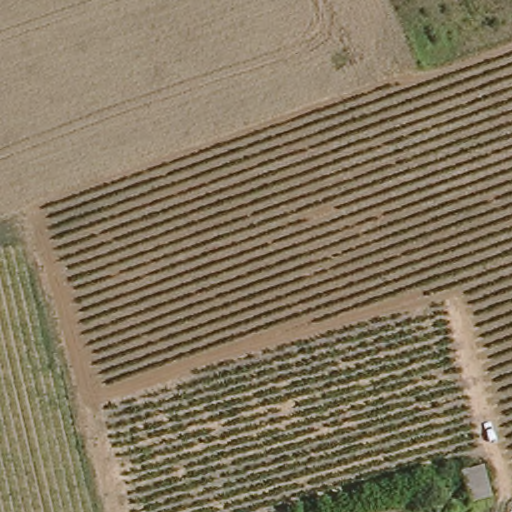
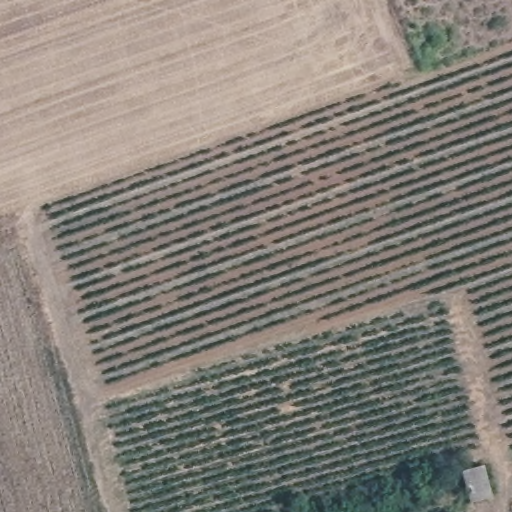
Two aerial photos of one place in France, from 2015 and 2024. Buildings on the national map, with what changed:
unchanged [(487,497),(465,502),(457,472),(479,466),(487,497)]

